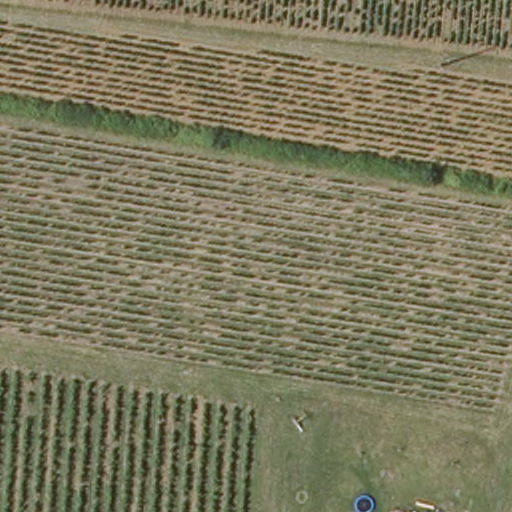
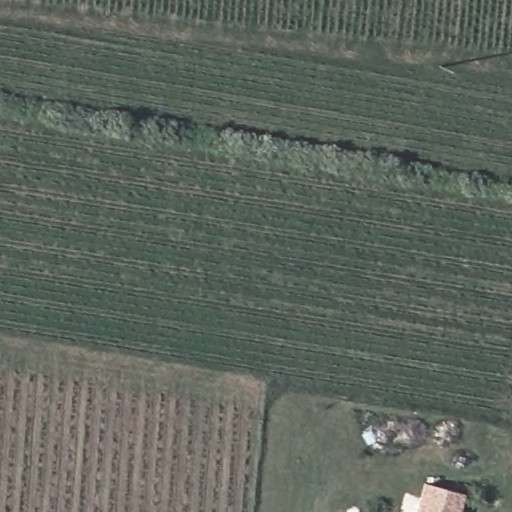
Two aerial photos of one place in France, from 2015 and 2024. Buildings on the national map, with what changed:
new [(421,482),(462,493),(457,512),(413,512),(421,482)]

